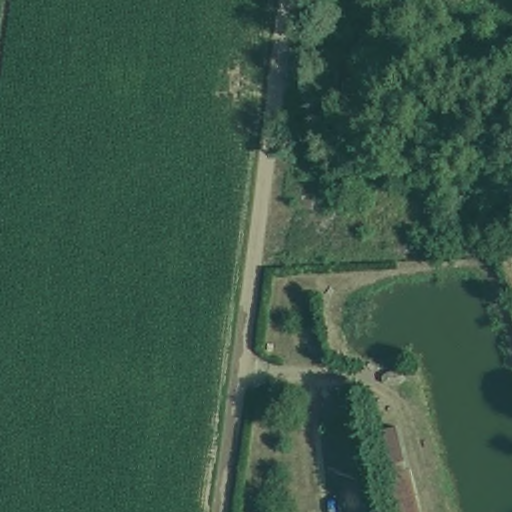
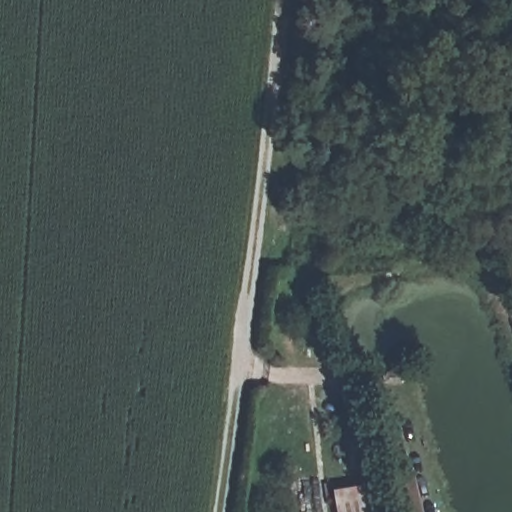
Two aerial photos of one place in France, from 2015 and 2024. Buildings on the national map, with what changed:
unchanged [(377,37),(365,73),(323,64),(332,31),(377,37)]
unchanged [(387,512),(369,433),(398,422),(426,512),(387,512)]

